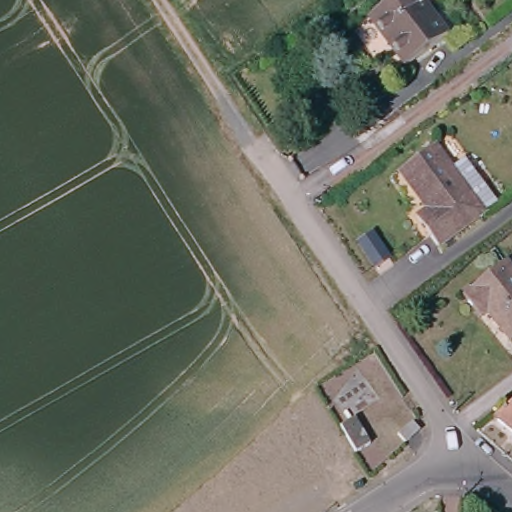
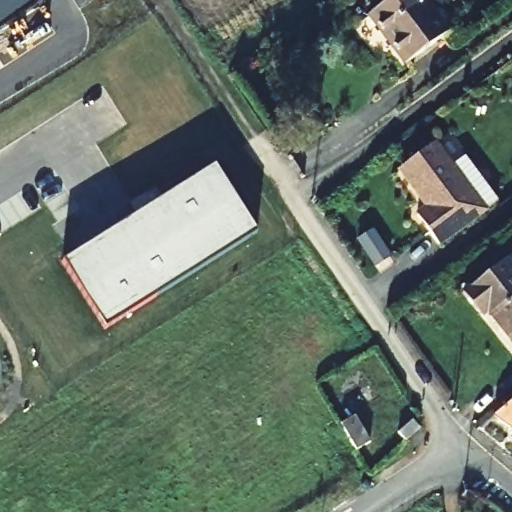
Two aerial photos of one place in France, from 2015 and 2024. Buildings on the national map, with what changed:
new [(35,8),(0,31),(0,0),(31,0),(35,8)]
unchanged [(405,64),(369,16),(391,0),(422,0),(446,34),(405,64)]
unchanged [(489,211),(443,245),(422,216),(432,209),(404,169),(439,144),(489,211)]
new [(256,231),(105,328),(63,260),(216,166),(256,231)]
unchanged [(377,244),(387,257),(373,267),(356,243),(370,234),(377,244)]
unchanged [(512,339),(511,341),(488,311),(481,317),(463,295),(504,260),(512,269),(512,339)]
unchanged [(512,401),(512,430),(494,416),(512,401)]

